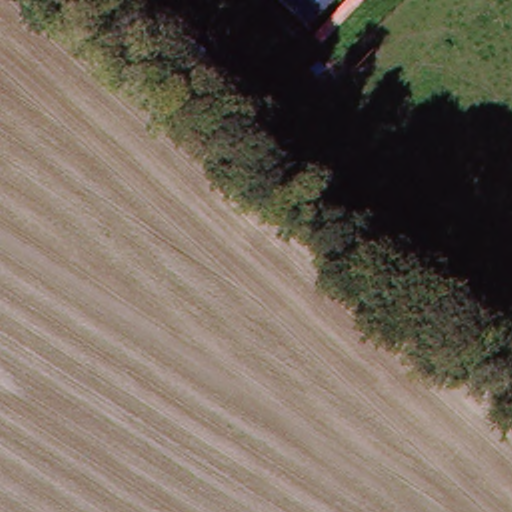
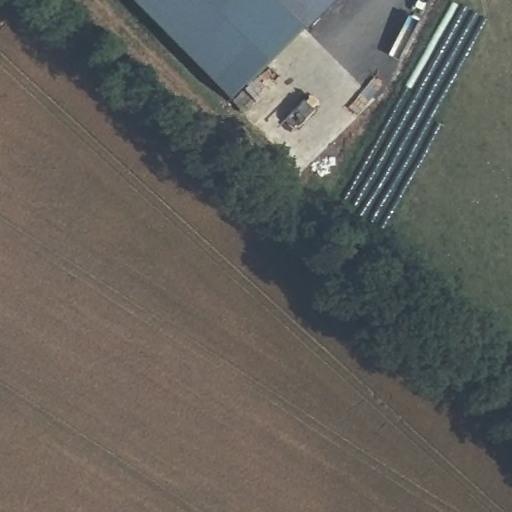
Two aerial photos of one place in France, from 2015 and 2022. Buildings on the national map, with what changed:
new [(130,0),(272,0),(302,30),(228,98),(130,0)]
new [(338,0),(307,29),(279,0),(338,0)]

